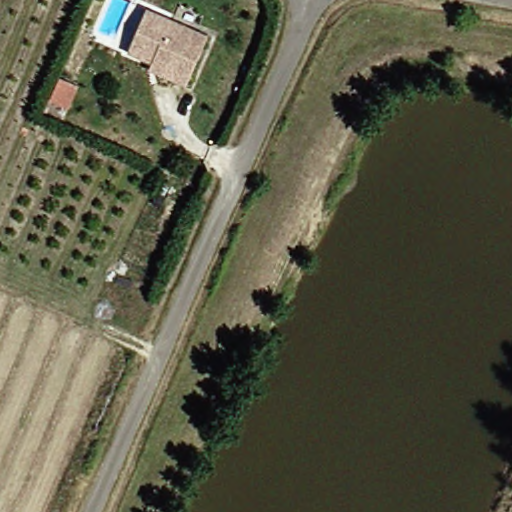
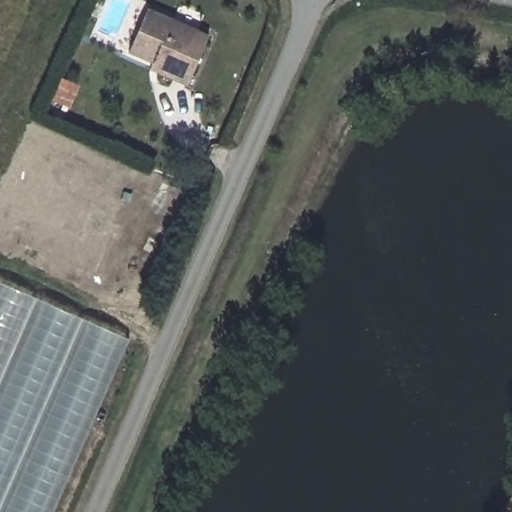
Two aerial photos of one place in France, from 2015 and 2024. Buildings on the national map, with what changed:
unchanged [(155,61),(131,50),(150,7),(211,34),(190,84),(173,77),(151,68),(155,61)]
new [(53,512),(0,512),(0,282),(129,338),(53,512)]

